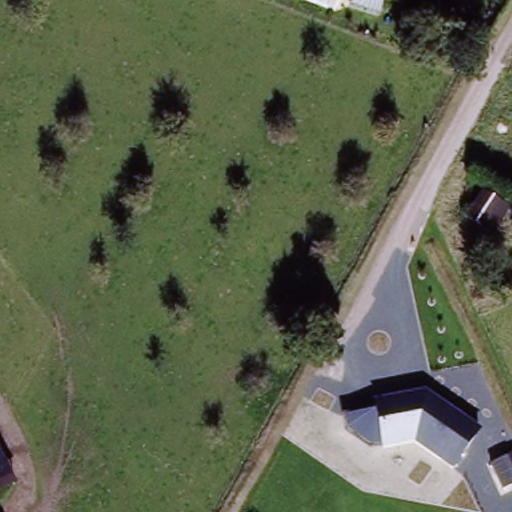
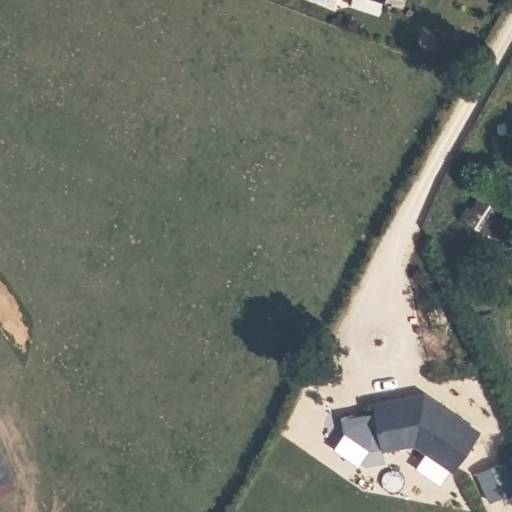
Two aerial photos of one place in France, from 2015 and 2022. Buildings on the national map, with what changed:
unchanged [(384,11),(356,5),(358,0),(387,0),(384,11)]
unchanged [(403,2),(395,0),(404,0),(403,2)]
unchanged [(464,220),(481,194),(512,211),(494,238),(464,220)]
unchanged [(454,470),(415,445),(379,450),(368,451),(346,434),(343,417),(368,415),(367,408),(426,396),(479,431),(454,470)]
unchanged [(18,488),(0,496),(0,449),(18,488)]

